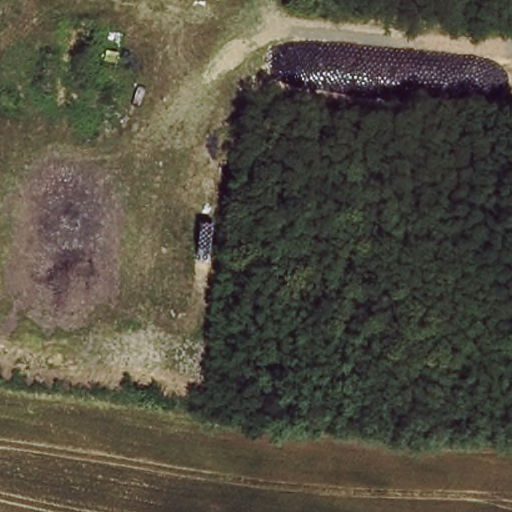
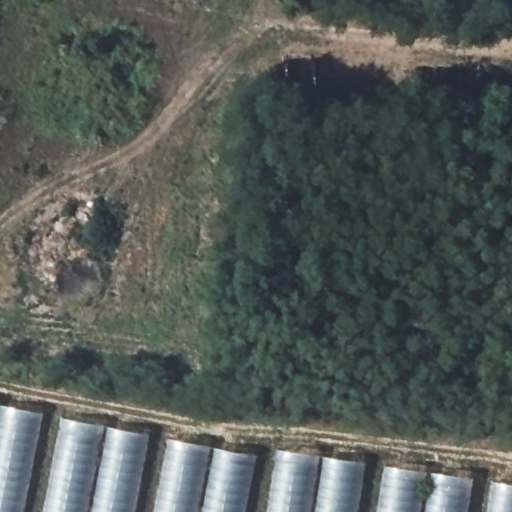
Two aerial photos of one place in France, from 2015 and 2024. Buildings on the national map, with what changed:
new [(26,512),(0,512),(0,406),(45,416),(26,512)]
new [(61,420),(149,437),(134,512),(43,512),(61,420)]
new [(247,512),(155,512),(169,440),(258,457),(247,512)]
new [(360,512),(267,512),(277,451),(368,465),(360,512)]
new [(469,512),(378,512),(385,467),(475,480),(469,512)]
new [(492,482),(512,485),(512,512),(487,512),(492,482)]

